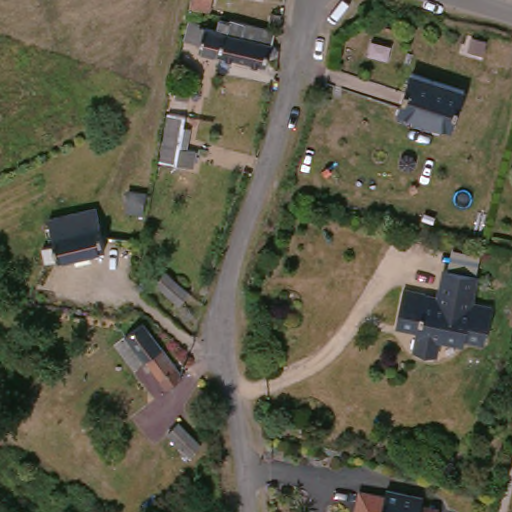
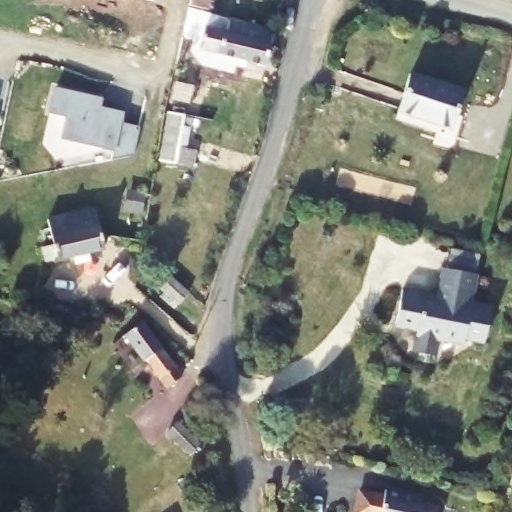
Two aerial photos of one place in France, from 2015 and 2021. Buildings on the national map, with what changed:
unchanged [(190,14),(193,0),(212,0),(208,18),(190,14)]
unchanged [(242,0),(267,0),(266,4),(242,0)]
unchanged [(203,22),(201,36),(209,37),(218,39),(220,29),(231,29),(232,29),(238,30),(273,39),(276,40),(272,55),(266,76),(249,71),(247,79),(235,76),(236,69),(198,59),(200,54),(182,50),(189,19),(203,22)]
unchanged [(459,100),(446,139),(395,121),(408,82),(459,100)]
new [(104,96),(102,105),(125,111),(122,123),(140,127),(133,155),(112,160),(114,150),(60,138),(66,117),(48,113),(54,87),(104,96)]
unchanged [(193,91),(187,117),(166,112),(170,97),(173,87),(193,91)]
unchanged [(186,121),(184,132),(190,133),(187,155),(198,156),(195,172),(158,167),(166,118),(186,121)]
unchanged [(45,254),(53,252),(51,245),(45,246),(43,237),(48,224),(96,214),(105,255),(88,258),(90,267),(76,270),(74,262),(48,267),(45,254)]
unchanged [(165,278),(183,292),(188,289),(195,295),(179,309),(156,290),(165,278)]
unchanged [(411,361),(413,353),(418,338),(394,332),(403,300),(421,305),(421,308),(433,311),(443,278),(475,287),(469,311),(489,317),(483,349),(463,345),(461,350),(438,345),(434,359),(433,367),(411,361)]
unchanged [(161,395),(118,343),(137,329),(178,381),(161,395)]
unchanged [(179,428),(201,449),(189,461),(167,440),(179,428)]
unchanged [(415,502),(414,509),(431,511),(431,512),(376,512),(378,497),(415,502)]

